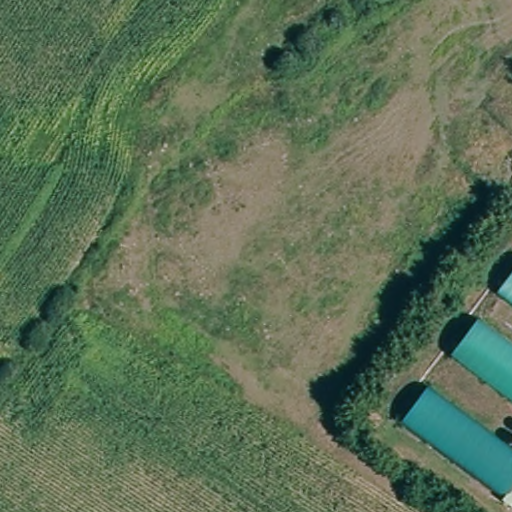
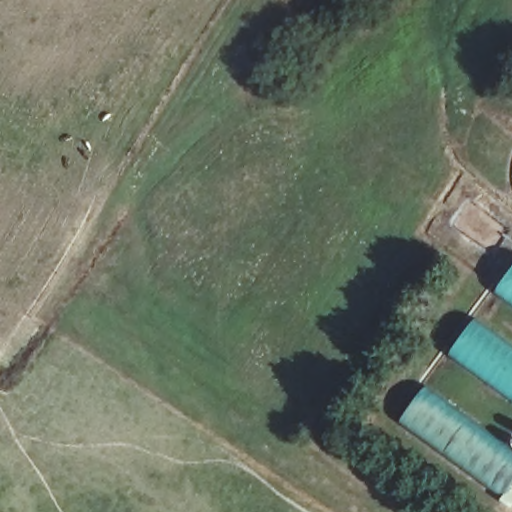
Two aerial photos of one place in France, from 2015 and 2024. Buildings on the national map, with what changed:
unchanged [(512,278),(512,294),(504,288),(512,278)]
unchanged [(485,313),(512,334),(512,394),(456,349),(485,313)]
unchanged [(512,442),(512,501),(404,416),(432,379),(512,442)]

